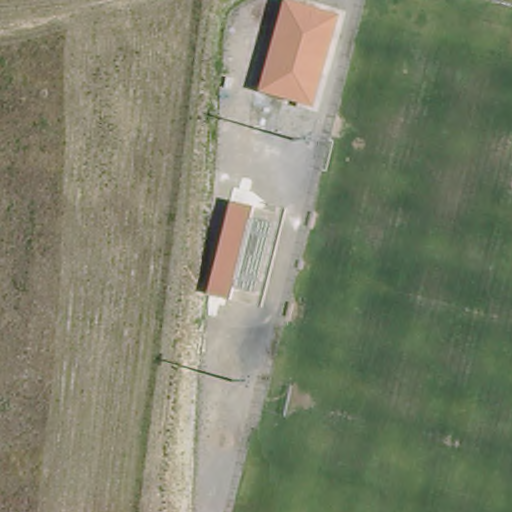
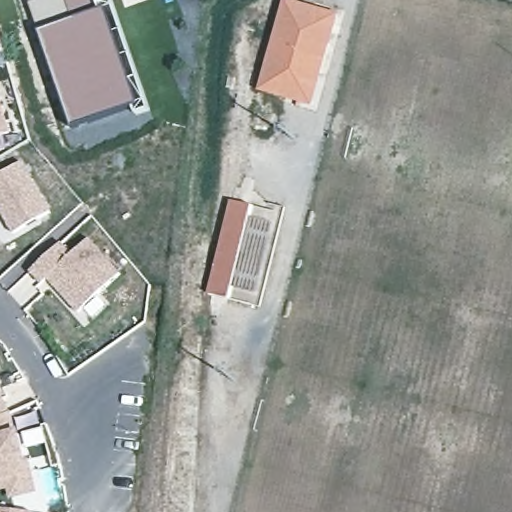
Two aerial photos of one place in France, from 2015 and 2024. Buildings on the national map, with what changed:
new [(132,105),(71,125),(39,31),(29,1),(33,0),(98,0),(99,1),(104,0),(111,0),(150,109),(135,114),(132,105)]
unchanged [(300,0),(337,10),(312,101),(258,86),(281,0),(300,0)]
new [(0,137),(0,97),(10,134),(0,137)]
new [(22,161),(50,211),(14,233),(0,209),(0,171),(2,173),(22,161)]
unchanged [(283,212),(260,305),(207,293),(230,199),(283,212)]
new [(63,244),(73,256),(90,240),(122,275),(80,314),(50,280),(44,285),(32,273),(63,244)]
new [(0,390),(5,403),(0,405),(0,390)]
new [(18,451),(21,451),(29,480),(2,488),(0,480),(0,405),(5,403),(18,451)]
new [(0,509),(22,512),(0,512),(0,509)]

